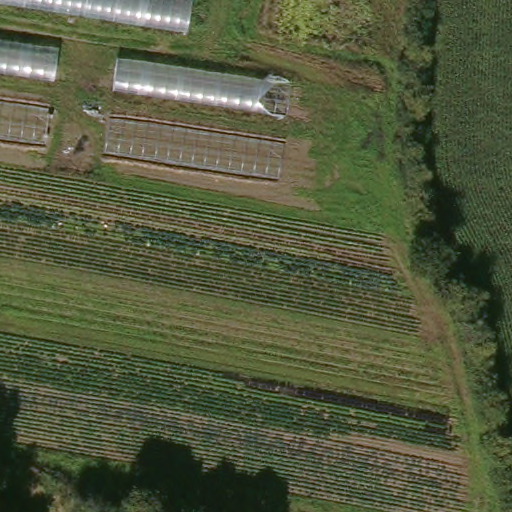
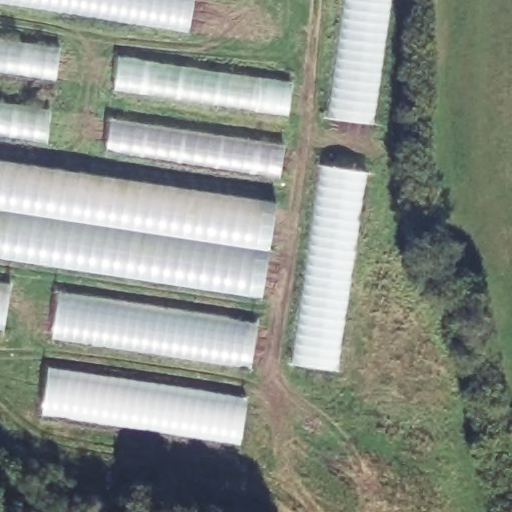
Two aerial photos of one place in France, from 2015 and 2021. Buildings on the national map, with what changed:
unchanged [(0,3),(0,0),(193,0),(188,32),(0,3)]
new [(347,0),(386,0),(368,125),(329,117),(347,0)]
new [(0,73),(0,42),(59,52),(54,82),(0,73)]
new [(114,91),(118,60),(292,86),(287,117),(114,91)]
new [(0,137),(0,106),(51,114),(46,144),(0,137)]
new [(107,152),(110,122),(283,147),(279,179),(107,152)]
new [(0,260),(0,161),(276,202),(261,300),(0,260)]
new [(294,362),(324,167),(363,174),(334,371),(294,362)]
new [(0,332),(0,288),(8,290),(3,332),(0,332)]
new [(52,340),(59,297),(255,329),(249,371),(52,340)]

